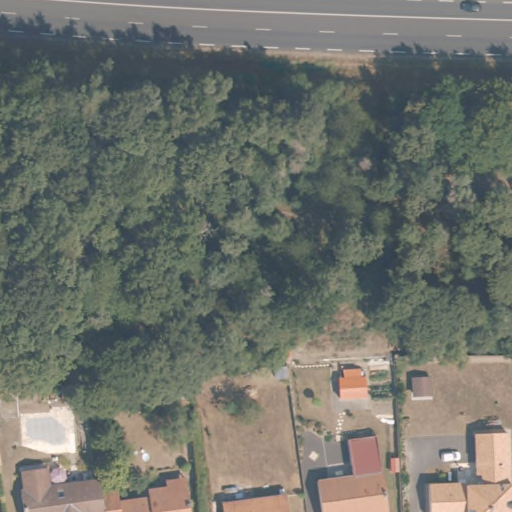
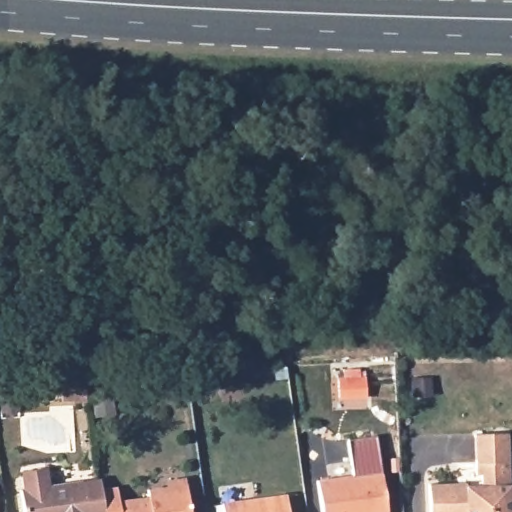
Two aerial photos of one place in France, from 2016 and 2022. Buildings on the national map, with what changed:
unchanged [(100,398),(100,412),(78,412),(77,399),(100,398)]
unchanged [(465,485),(465,487),(481,486),(480,475),(475,476),(473,435),(506,433),(508,485),(510,485),(511,507),(511,512),(429,512),(428,486),(465,485)]
unchanged [(386,512),(324,512),(320,485),(353,480),(350,464),(378,460),(386,512)]
unchanged [(105,492),(107,512),(26,512),(24,490),(29,490),(27,470),(52,467),(55,487),(103,480),(105,492)]
unchanged [(151,496),(150,489),(170,485),(169,480),(189,475),(190,490),(194,512),(107,512),(105,492),(120,490),(122,501),(151,496)]
unchanged [(295,512),(227,512),(226,506),(292,495),(295,512)]

